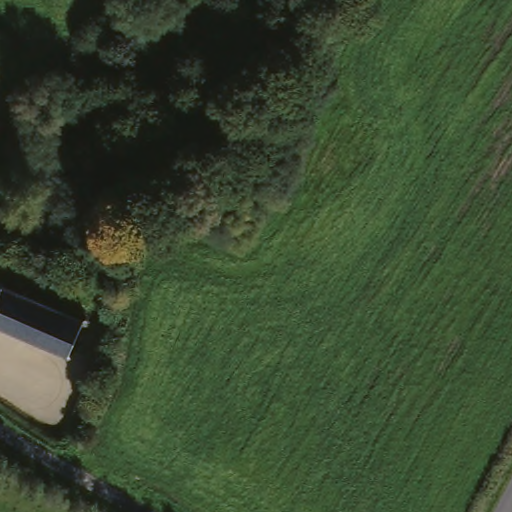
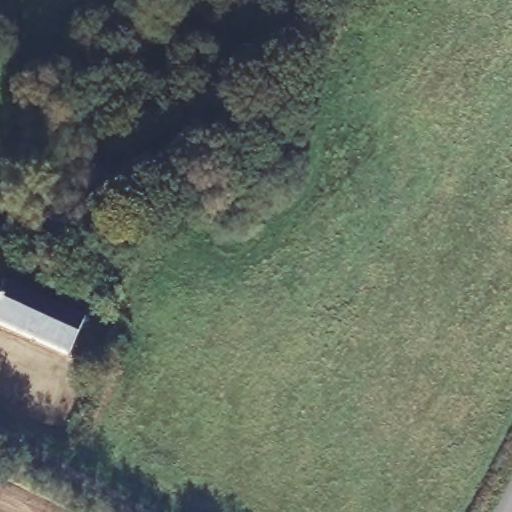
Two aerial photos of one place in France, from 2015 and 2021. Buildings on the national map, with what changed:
unchanged [(0,338),(0,320),(8,296),(80,322),(68,361),(0,338)]

